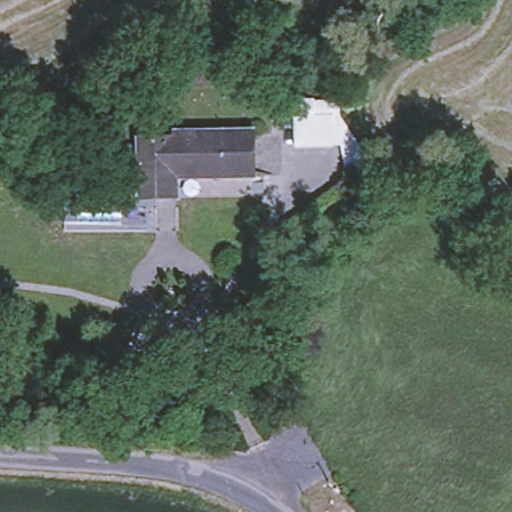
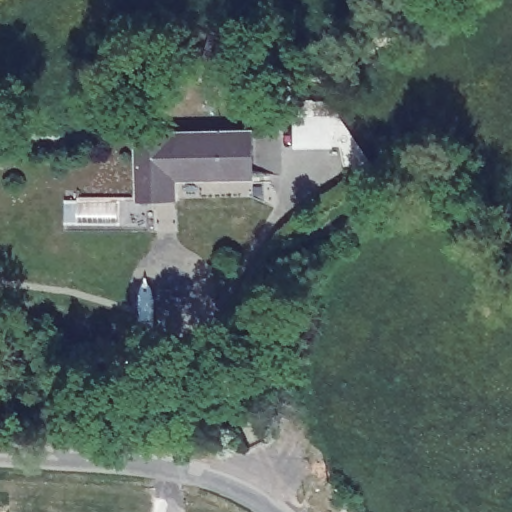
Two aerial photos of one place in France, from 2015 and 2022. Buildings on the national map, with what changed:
unchanged [(330,115),(331,145),(296,146),(295,116),(330,115)]
unchanged [(247,127),(247,171),(170,172),(170,191),(151,192),(151,193),(135,193),(133,134),(170,133),(170,128),(247,127)]

